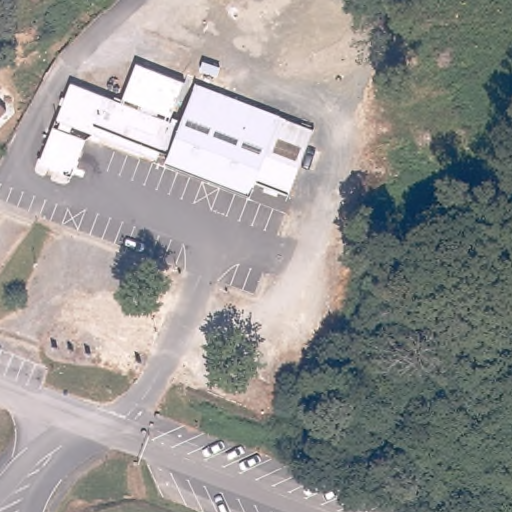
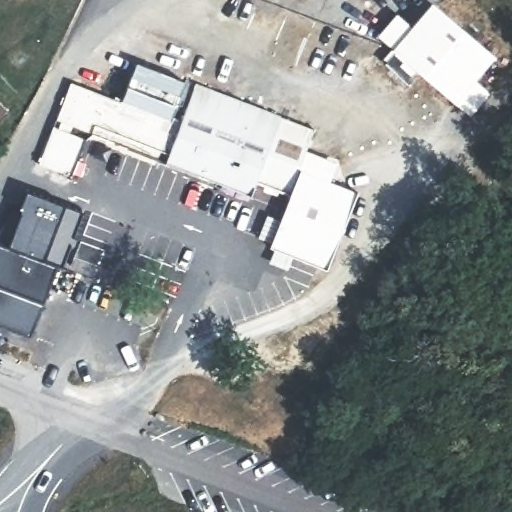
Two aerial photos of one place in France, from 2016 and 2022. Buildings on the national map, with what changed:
new [(391,49),(376,36),(395,12),(411,25),(430,2),(495,57),(474,80),(489,92),(469,117),(418,74),(407,85),(380,62),(391,49)]
unchanged [(165,161),(168,154),(160,152),(171,122),(121,103),(137,62),(185,81),(195,84),(281,118),(312,129),(288,194),(256,182),(254,187),(251,194),(165,161)]
unchanged [(171,122),(158,159),(58,120),(71,84),(171,122)]
unchanged [(6,110),(0,116),(0,104),(6,110)]
unchanged [(86,140),(72,177),(39,164),(54,127),(86,140)]
new [(288,194),(304,150),(337,162),(330,181),(357,191),(327,270),(268,248),(288,194)]
new [(58,267),(43,303),(30,337),(0,326),(0,245),(58,267)]

